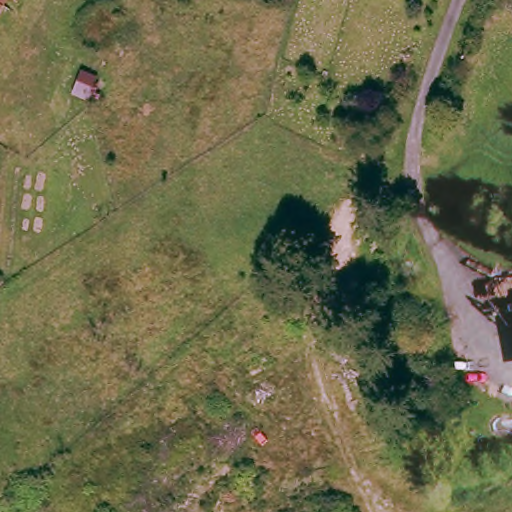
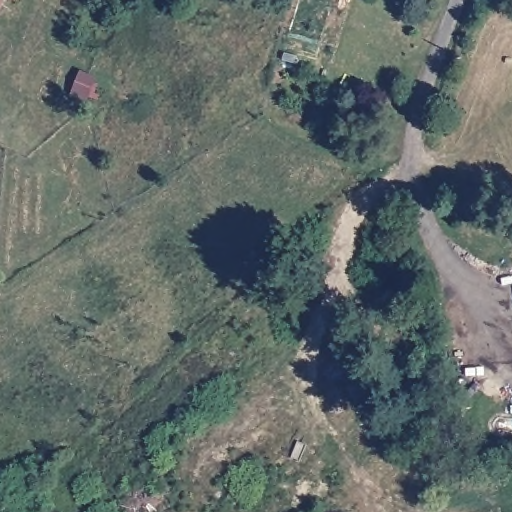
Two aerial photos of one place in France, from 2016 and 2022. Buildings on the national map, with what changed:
unchanged [(0,16),(0,3),(6,7),(0,16)]

